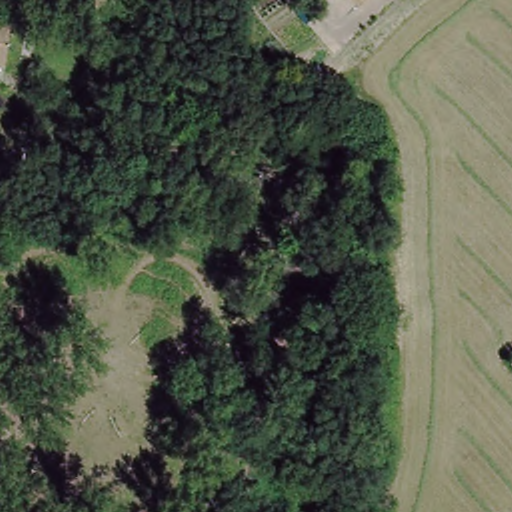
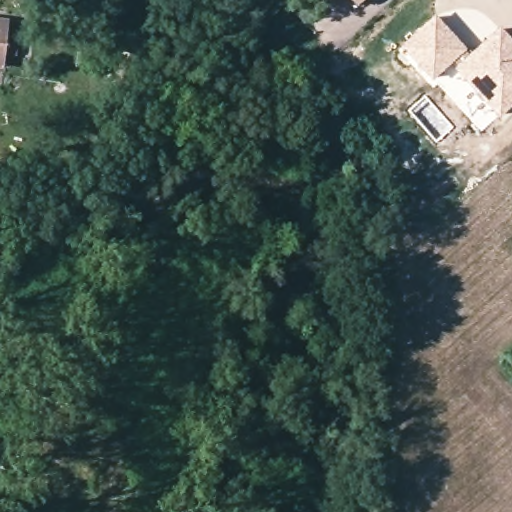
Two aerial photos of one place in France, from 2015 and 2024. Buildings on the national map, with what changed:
unchanged [(362,5),(357,0),(367,0),(362,5)]
unchanged [(4,61),(0,61),(0,12),(11,13),(4,61)]
new [(436,14),(470,51),(500,26),(512,39),(512,104),(498,116),(452,64),(432,81),(400,47),(436,14)]

